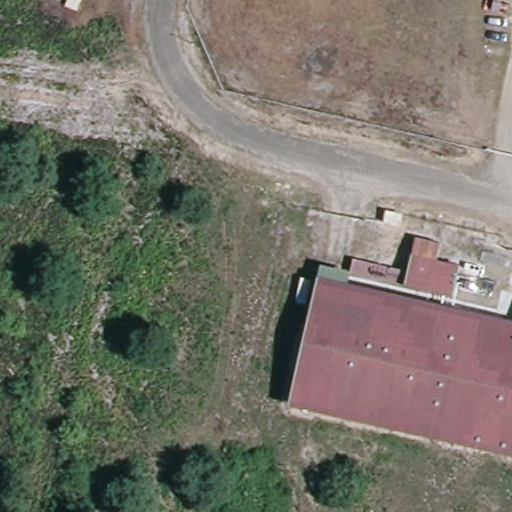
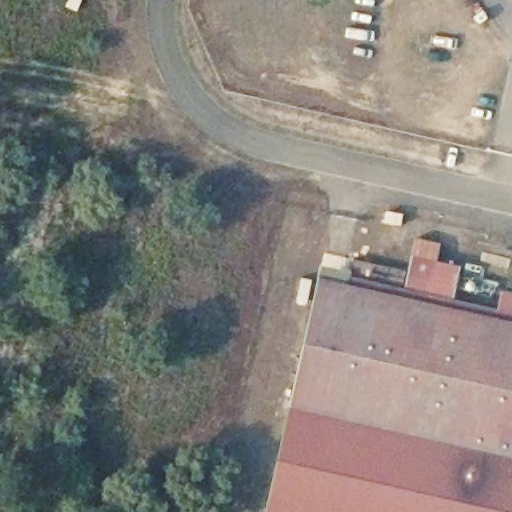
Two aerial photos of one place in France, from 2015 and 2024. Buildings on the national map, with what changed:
unchanged [(385,209),(402,213),(400,223),(383,219),(385,209)]
unchanged [(441,240),(436,259),(466,266),(459,295),(404,284),(414,235),(441,240)]
unchanged [(512,309),(512,477),(283,427),(320,270),(512,309)]
new [(512,477),(512,512),(267,512),(265,512),(283,427),(512,477)]

